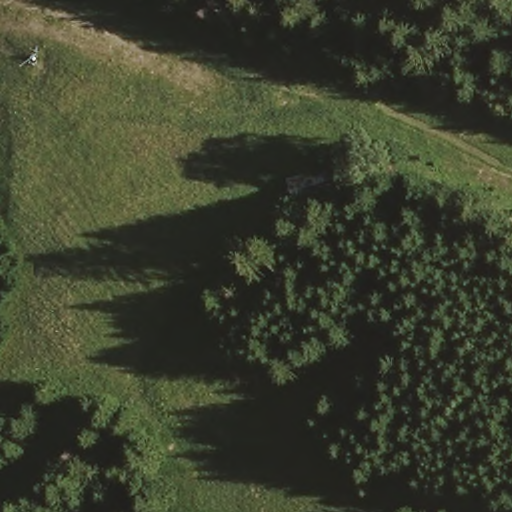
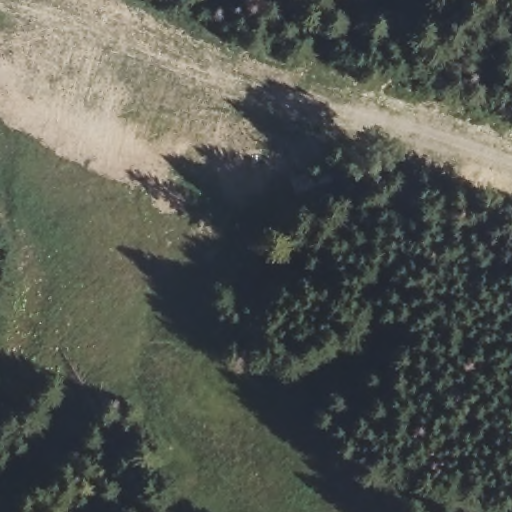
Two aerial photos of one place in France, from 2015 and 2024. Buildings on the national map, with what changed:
unchanged [(358,236),(347,205),(388,192),(399,222),(358,236)]

